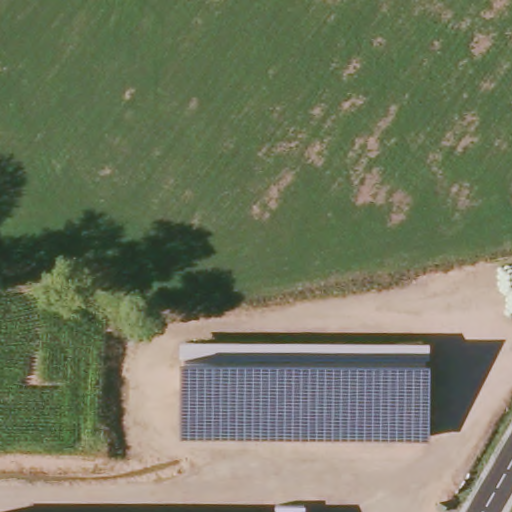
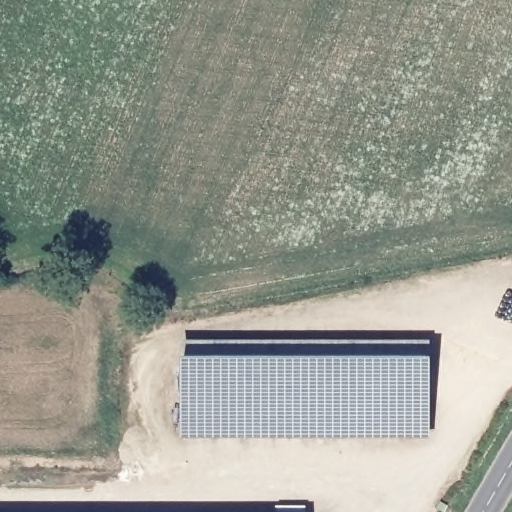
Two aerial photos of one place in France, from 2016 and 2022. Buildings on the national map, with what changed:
unchanged [(428,338),(430,437),(181,436),(179,338),(428,338)]

